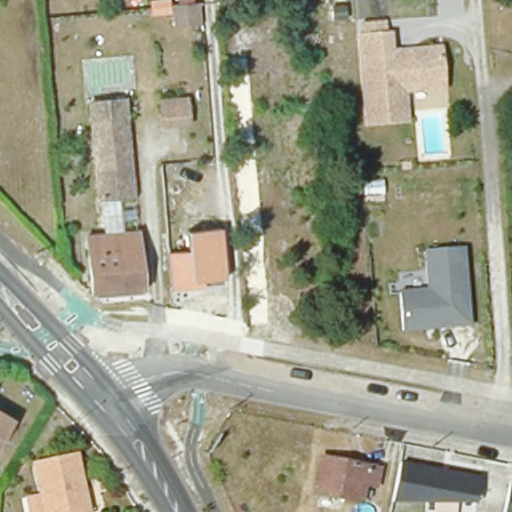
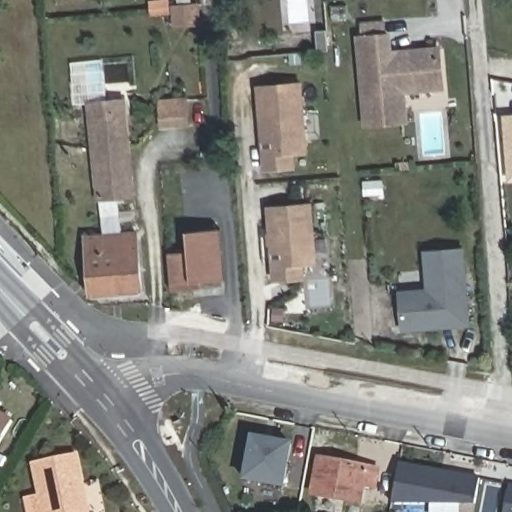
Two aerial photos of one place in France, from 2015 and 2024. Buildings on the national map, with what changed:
unchanged [(198,5),(200,25),(175,27),(173,7),(198,5)]
unchanged [(363,34),(361,23),(385,21),(386,32),(394,32),(395,50),(443,46),(448,90),(407,95),(410,123),(365,128),(355,35),(363,34)]
new [(296,155),(296,169),(264,172),(257,85),(303,81),(310,154),(296,155)]
unchanged [(87,102),(120,100),(121,115),(125,156),(93,159),(89,117),(87,102)]
unchanged [(188,100),(190,116),(164,117),(163,102),(188,100)]
new [(512,115),(512,182),(509,182),(503,116),(512,115)]
unchanged [(129,195),(119,196),(121,230),(136,229),(140,287),(91,291),(86,232),(99,231),(95,179),(93,159),(125,156),(129,195)]
new [(305,266),(306,280),(274,283),(268,206),(314,202),(319,263),(305,266)]
unchanged [(190,254),(188,232),(221,229),(226,278),(205,281),(206,288),(171,292),(168,254),(190,254)]
unchanged [(401,292),(428,290),(425,250),(466,248),(473,328),(404,334),(401,292)]
unchanged [(0,416),(10,421),(0,437),(0,416)]
new [(286,489),(243,482),(252,435),(295,442),(286,489)]
unchanged [(40,497),(32,463),(73,455),(85,512),(31,512),(28,499),(40,497)]
unchanged [(375,488),(362,486),(359,503),(312,495),(319,458),(379,468),(375,488)]
unchanged [(393,502),(401,463),(481,477),(476,503),(393,502)]
unchanged [(512,482),(512,512),(505,512),(512,482)]

